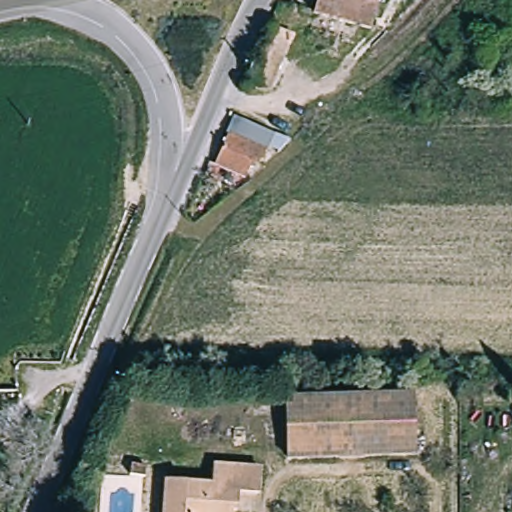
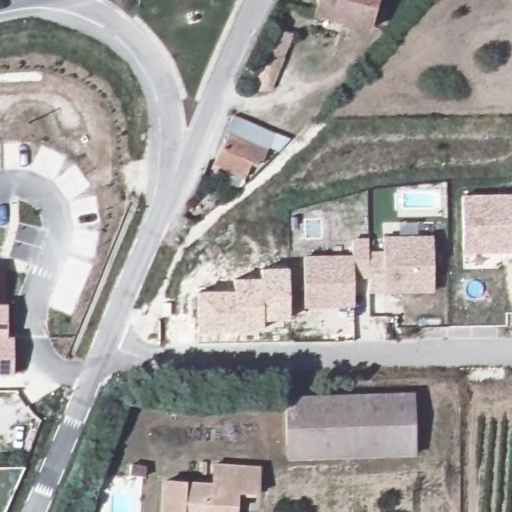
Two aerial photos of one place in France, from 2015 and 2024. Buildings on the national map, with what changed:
unchanged [(311,11),(314,0),(375,0),(370,17),(368,26),(311,11)]
unchanged [(269,26),(291,36),(266,95),(244,85),(269,26)]
unchanged [(282,126),(271,150),(268,150),(265,157),(259,154),(252,167),(221,154),(241,109),(282,126)]
new [(512,254),(463,255),(462,199),(512,198),(512,254)]
new [(382,251),(382,236),(432,236),(433,290),(368,290),(368,275),(368,251),(382,251)]
new [(351,255),(351,239),(367,239),(368,251),(368,275),(352,275),(353,304),(303,305),(302,256),(351,255)]
new [(289,266),(290,318),(263,318),(262,329),(198,330),(197,290),(234,290),(233,277),(261,277),(260,267),(289,266)]
new [(0,374),(0,303),(7,303),(8,337),(15,337),(13,374),(0,374)]
unchanged [(415,453),(288,457),(286,398),(413,395),(415,453)]
unchanged [(164,481),(213,484),(214,466),(260,468),(258,496),(236,495),(236,511),(230,511),(230,512),(162,512),(164,481)]

